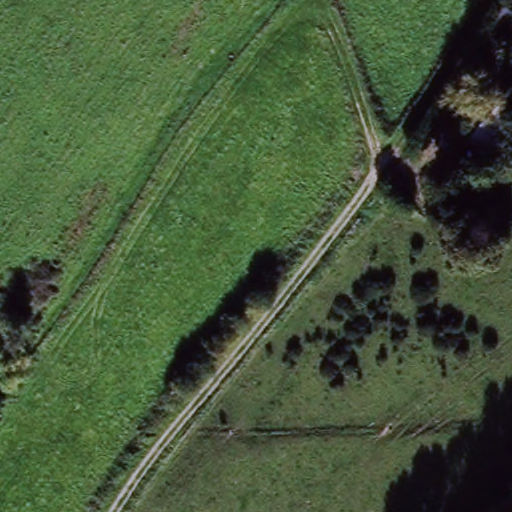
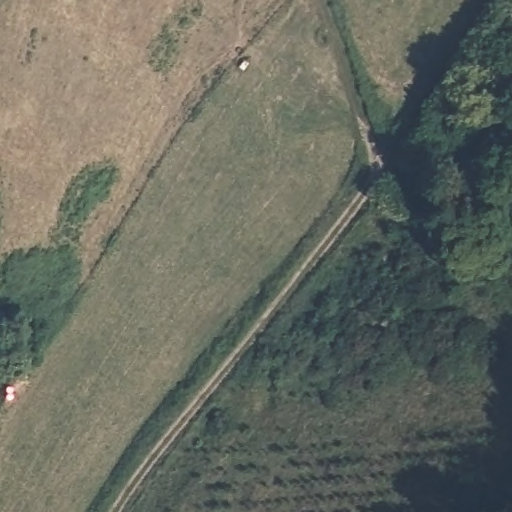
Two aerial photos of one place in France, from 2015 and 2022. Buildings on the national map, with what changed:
unchanged [(512,136),(492,165),(464,145),(488,110),(512,125),(512,136)]

